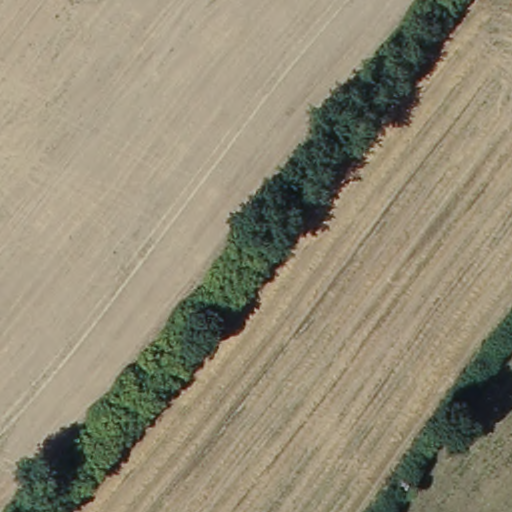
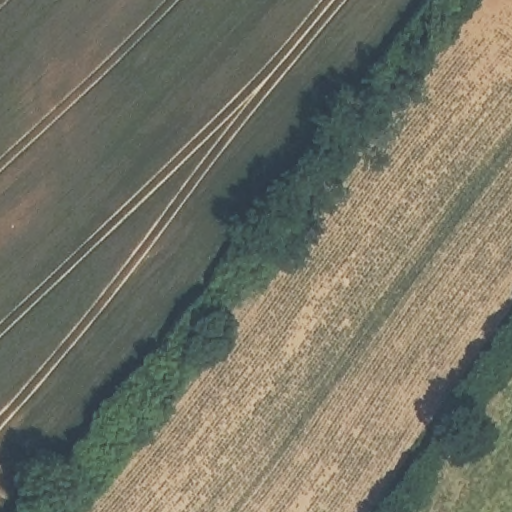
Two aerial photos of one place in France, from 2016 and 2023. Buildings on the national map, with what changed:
[]

